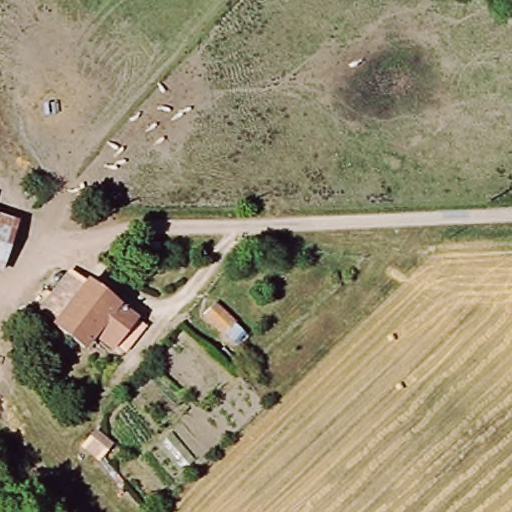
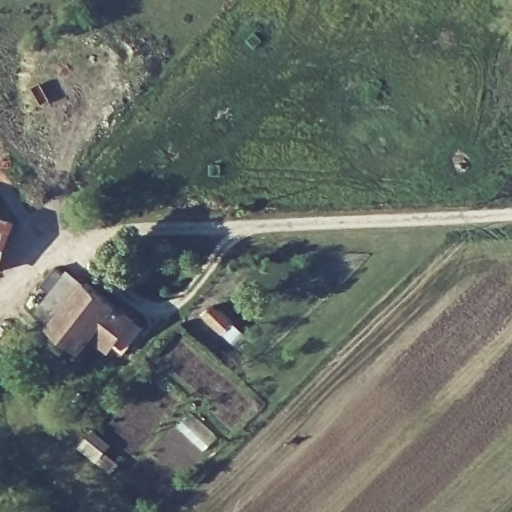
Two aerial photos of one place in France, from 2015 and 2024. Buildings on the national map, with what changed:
unchanged [(1,271),(0,271),(0,222),(14,227),(1,271)]
unchanged [(47,320),(79,281),(93,292),(97,290),(140,325),(120,351),(102,339),(89,354),(47,320)]
unchanged [(107,447),(101,456),(85,444),(93,435),(107,447)]

